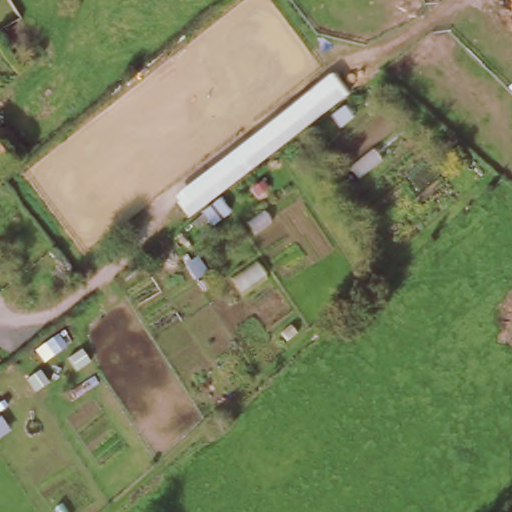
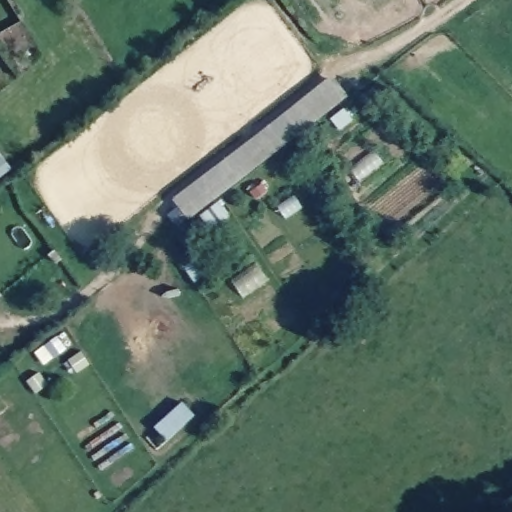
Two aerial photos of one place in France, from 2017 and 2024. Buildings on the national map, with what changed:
unchanged [(332,75),(349,97),(190,219),(174,198),(332,75)]
unchanged [(0,118),(12,134),(5,138),(19,159),(0,174),(0,118)]
unchanged [(221,204),(228,215),(211,228),(204,217),(221,204)]

